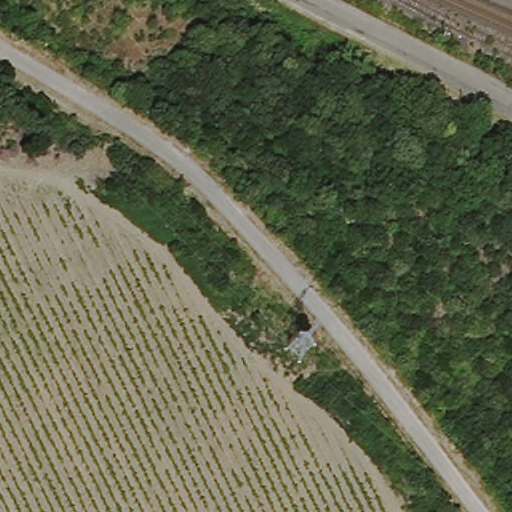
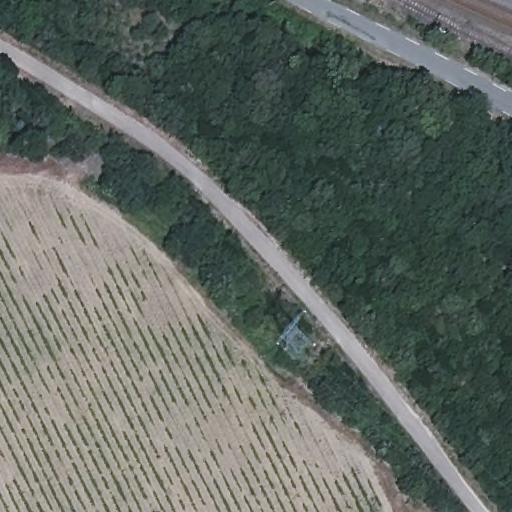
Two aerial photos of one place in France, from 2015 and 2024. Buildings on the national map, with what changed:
[]

